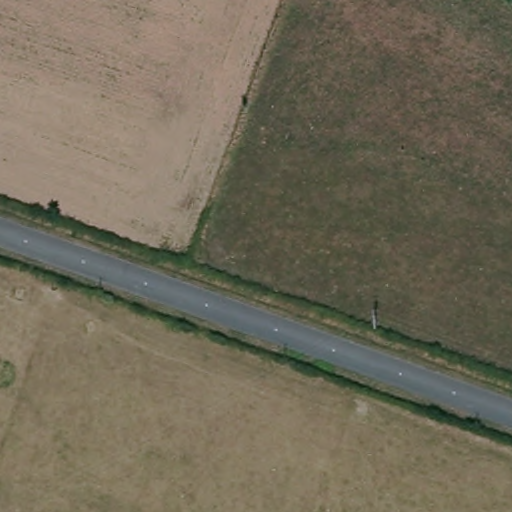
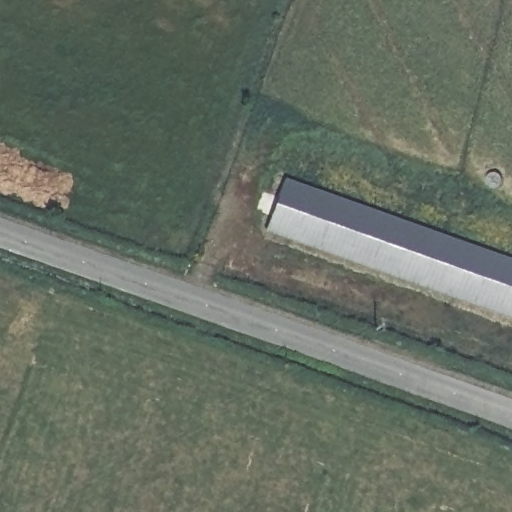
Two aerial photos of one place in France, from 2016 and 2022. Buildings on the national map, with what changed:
new [(284,179),(512,261),(512,321),(265,233),(284,179)]

